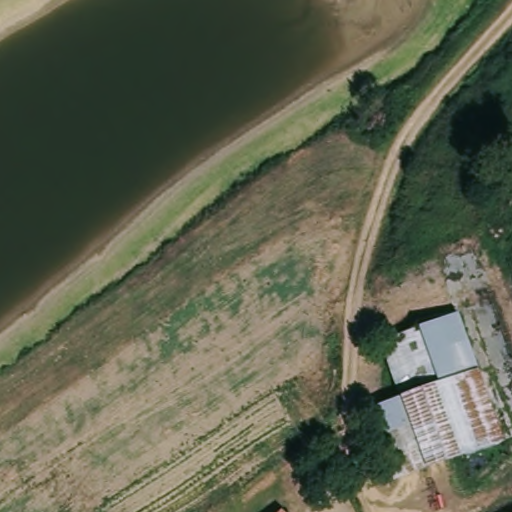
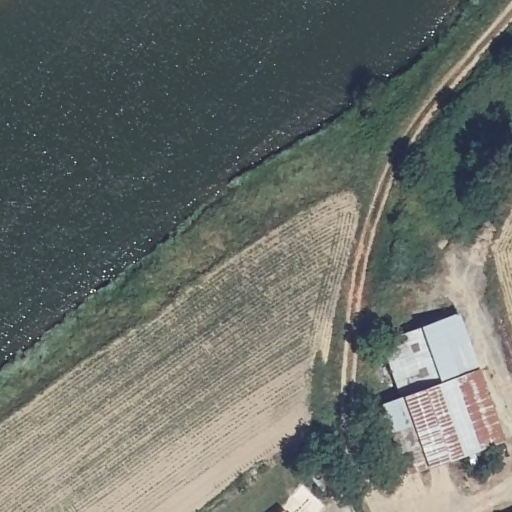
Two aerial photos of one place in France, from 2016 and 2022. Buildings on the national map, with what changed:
unchanged [(507,441),(428,468),(393,480),(365,408),(398,397),(380,341),(417,326),(459,310),(507,441)]
unchanged [(284,509),(287,512),(280,512),(283,508),(284,509)]

